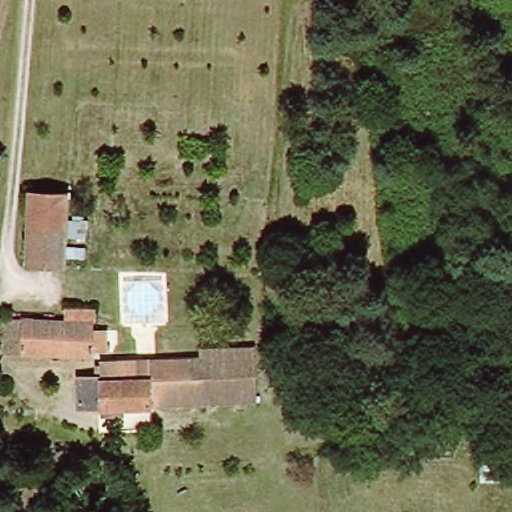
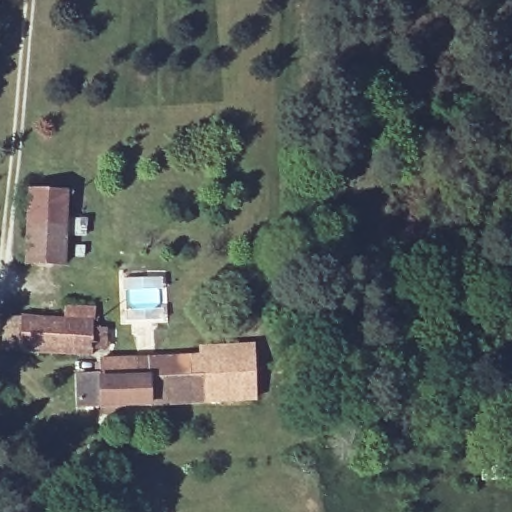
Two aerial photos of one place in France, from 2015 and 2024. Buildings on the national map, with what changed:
unchanged [(68,191),(66,265),(27,264),(31,191),(68,191)]
unchanged [(126,321),(124,279),(162,277),(164,320),(126,321)]
unchanged [(5,315),(22,317),(66,321),(67,309),(95,311),(93,329),(107,331),(105,350),(92,349),(91,356),(20,350),(2,348),(5,315)]
unchanged [(123,405),(123,413),(102,413),(102,406),(79,407),(77,376),(100,375),(100,360),(202,355),(202,348),(252,346),(254,400),(123,405)]

